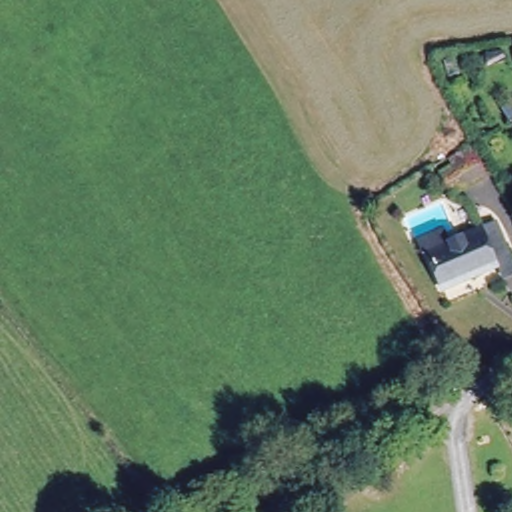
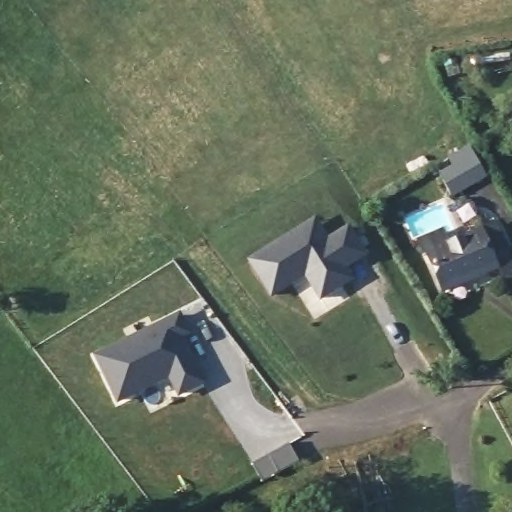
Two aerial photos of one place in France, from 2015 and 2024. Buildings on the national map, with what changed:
unchanged [(512,39),(512,56),(508,40),(512,39)]
unchanged [(460,191),(447,170),(472,154),(485,174),(460,191)]
new [(311,218),(320,232),(325,239),(345,226),(361,253),(339,267),(342,271),(344,270),(348,277),(317,296),(302,272),(268,292),(246,258),(292,230),(311,218)]
unchanged [(503,278),(496,266),(441,290),(425,250),(419,236),(438,229),(445,242),(493,222),(507,252),(512,262),(512,274),(503,278)]
new [(191,335),(184,338),(206,384),(177,398),(169,379),(117,403),(93,354),(181,313),(191,335)]

